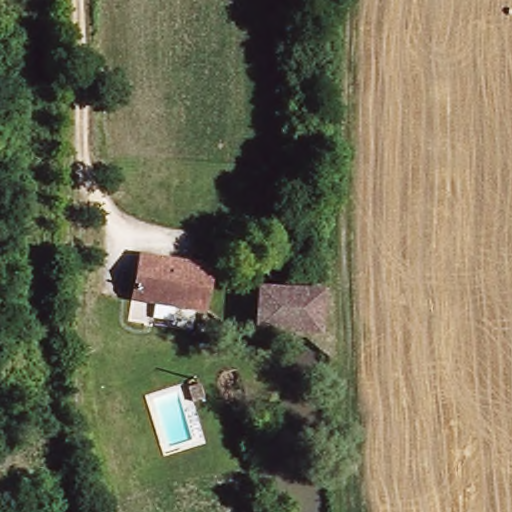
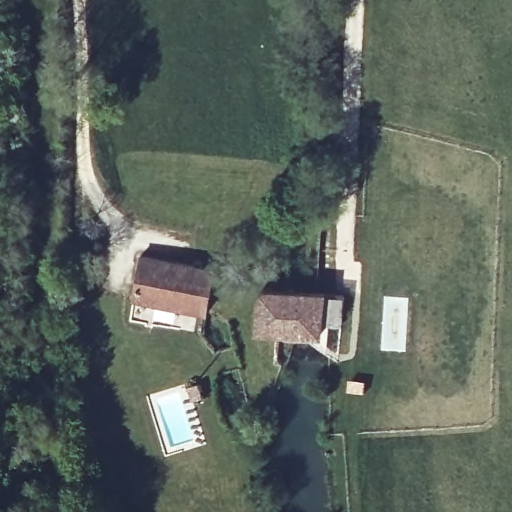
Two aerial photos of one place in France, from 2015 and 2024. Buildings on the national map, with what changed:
unchanged [(142,255),(216,269),(207,313),(134,298),(142,255)]
unchanged [(255,328),(257,289),(320,294),(317,333),(255,328)]
unchanged [(195,400),(190,385),(201,381),(206,397),(195,400)]

